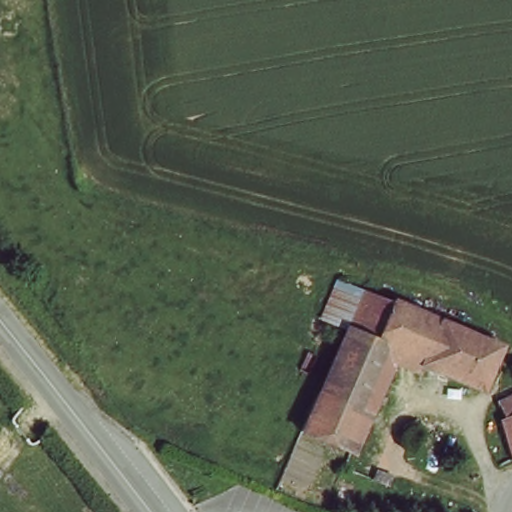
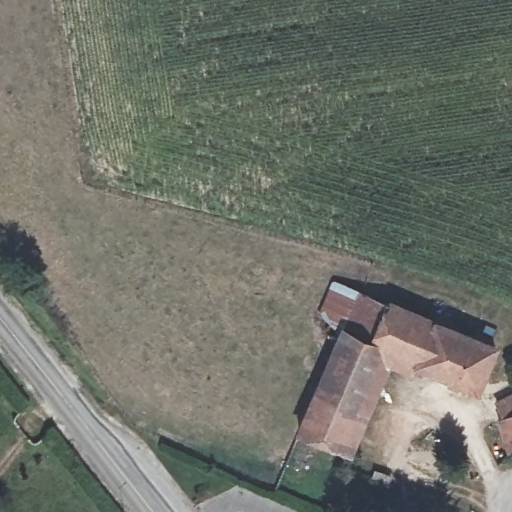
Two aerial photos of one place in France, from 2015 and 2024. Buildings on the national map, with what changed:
unchanged [(333,281),(359,292),(342,332),(317,322),(333,281)]
unchanged [(372,351),(341,337),(342,333),(359,292),(392,306),(372,351)]
unchanged [(499,354),(479,397),(385,357),(372,351),(392,306),(499,354)]
unchanged [(385,357),(358,419),(369,424),(351,465),(298,443),(341,337),(372,351),(385,357)]
unchanged [(512,395),(512,444),(496,402),(512,395)]

